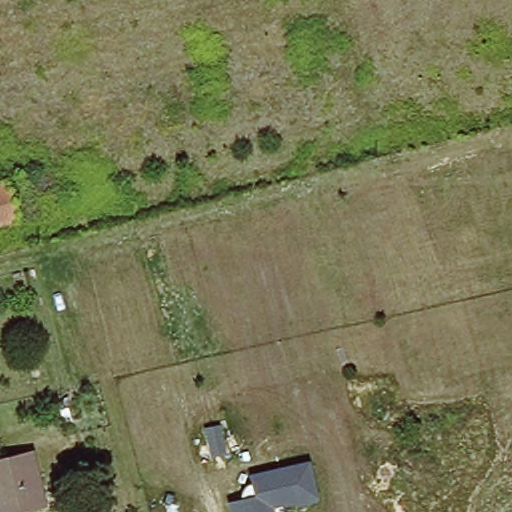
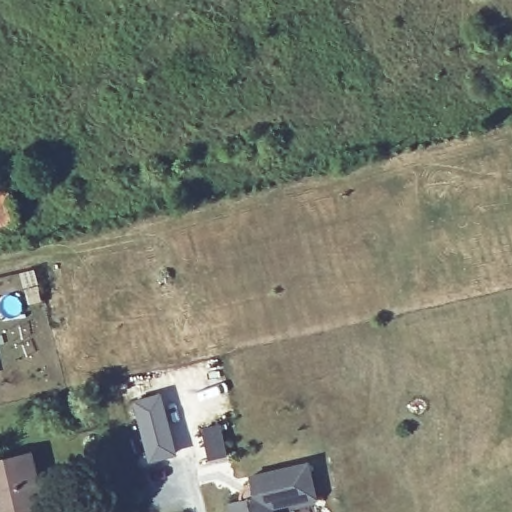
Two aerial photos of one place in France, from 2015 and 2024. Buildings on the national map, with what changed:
unchanged [(0,190),(5,189),(15,227),(0,230),(0,190)]
new [(150,463),(134,399),(162,392),(179,454),(150,463)]
unchanged [(47,508),(23,512),(0,512),(0,463),(36,456),(47,508)]
unchanged [(319,499),(275,509),(276,512),(229,512),(227,502),(254,496),(250,476),(311,462),(319,499)]

